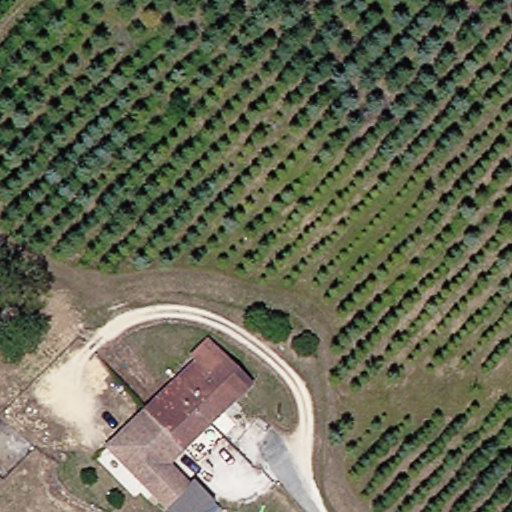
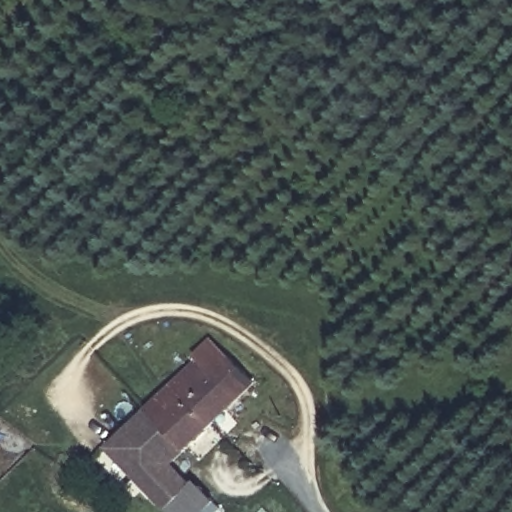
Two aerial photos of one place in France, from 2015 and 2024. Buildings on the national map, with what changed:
unchanged [(102,450),(138,414),(180,372),(185,378),(197,368),(187,355),(204,341),(247,388),(177,455),(163,468),(183,489),(192,491),(206,507),(202,512),(160,512),(102,450)]

